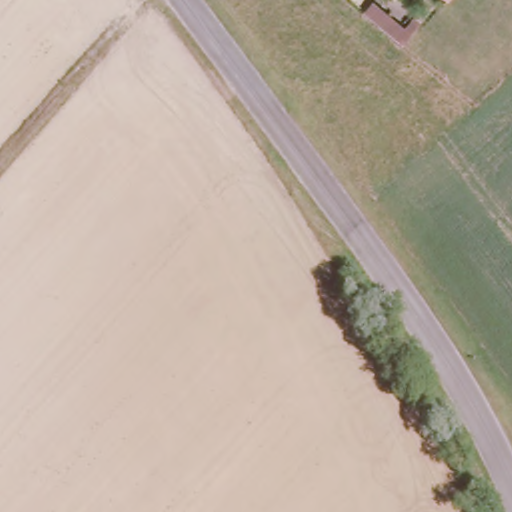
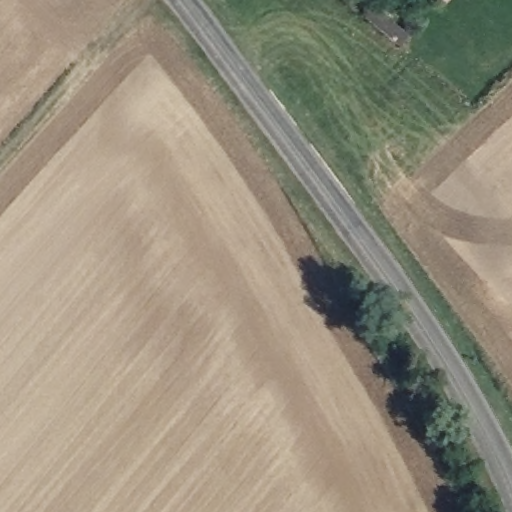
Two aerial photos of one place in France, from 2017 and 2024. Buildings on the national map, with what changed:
unchanged [(444,7),(436,0),(450,0),(444,7)]

